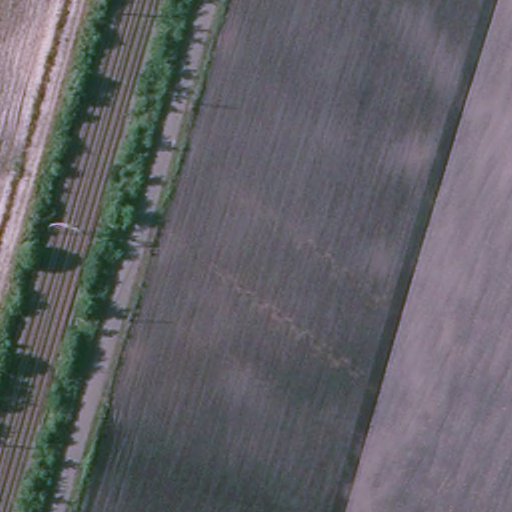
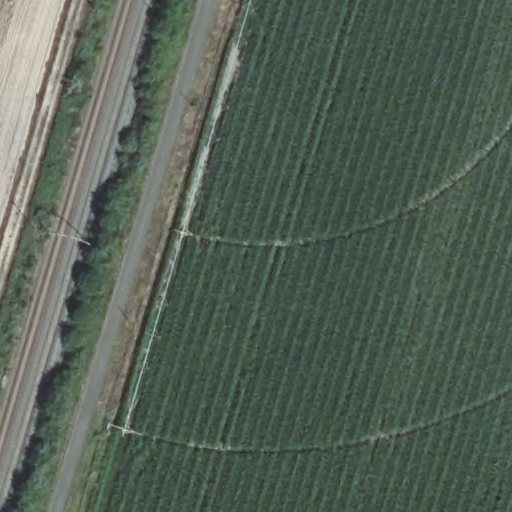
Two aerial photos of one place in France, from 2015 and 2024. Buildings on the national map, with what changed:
[]

